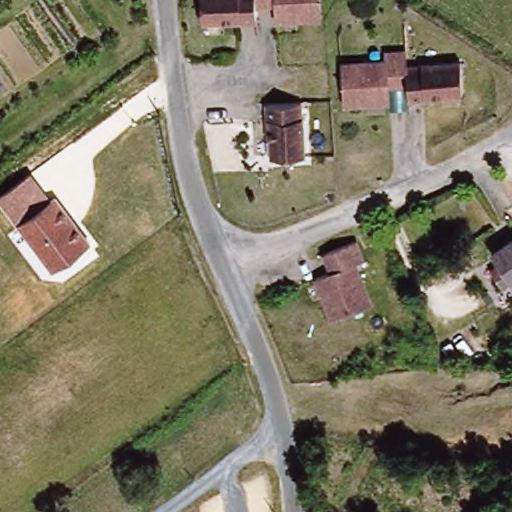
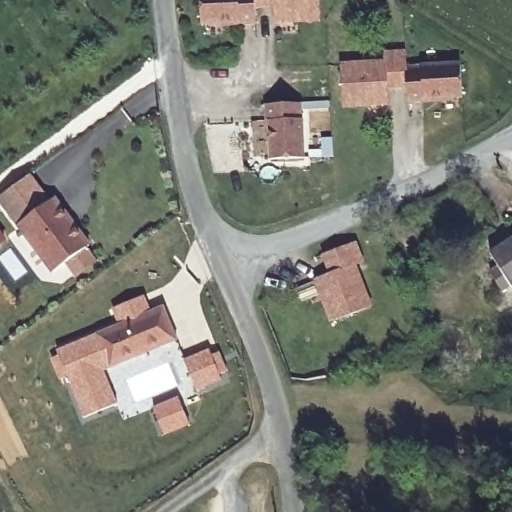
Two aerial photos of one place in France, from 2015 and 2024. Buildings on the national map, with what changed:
unchanged [(318,28),(277,29),(277,10),(253,11),(253,30),(222,31),(222,26),(200,27),(199,0),(317,0),(318,28)]
unchanged [(386,42),(407,41),(407,57),(459,55),(460,90),(438,91),(438,95),(408,96),(407,79),(385,79),(385,98),(344,99),(343,56),(386,54),(386,42)]
unchanged [(273,162),(272,137),(268,137),(268,106),(304,103),(304,161),(273,162)]
unchanged [(32,174),(51,199),(56,195),(92,244),(52,274),(0,202),(0,197),(32,174)]
unchanged [(333,275),(326,256),(361,243),(368,262),(361,264),(376,310),(332,325),(318,281),(324,278),(333,275)]
unchanged [(496,274),(504,269),(495,254),(512,243),(512,289),(506,292),(496,274)]
new [(109,311),(139,299),(145,315),(159,310),(172,343),(98,373),(112,406),(80,420),(52,353),(116,327),(109,311)]
demolished [(492,362),(475,369),(468,358),(448,368),(437,343),(474,326),(492,362)]
new [(206,352),(218,381),(193,392),(181,362),(206,352)]

